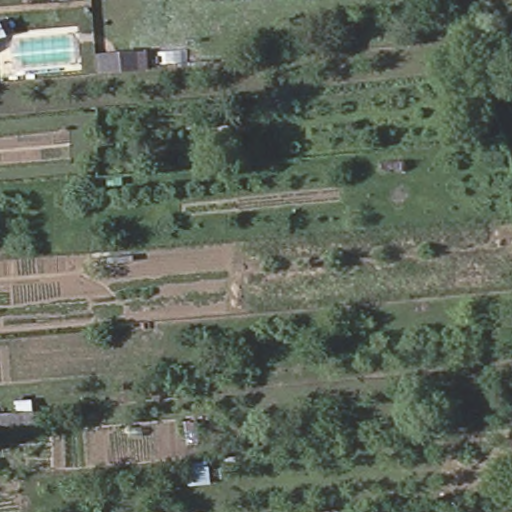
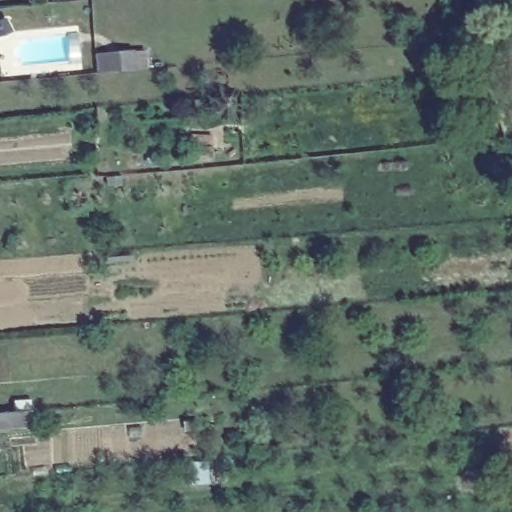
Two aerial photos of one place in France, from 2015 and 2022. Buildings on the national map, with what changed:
unchanged [(0,45),(0,38),(1,41),(0,45)]
unchanged [(136,74),(111,76),(110,57),(135,55),(136,74)]

